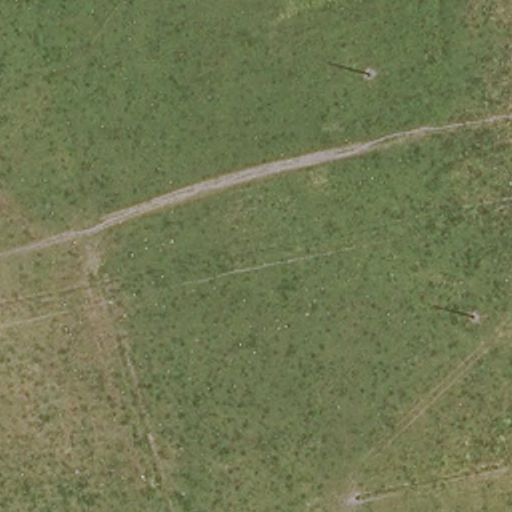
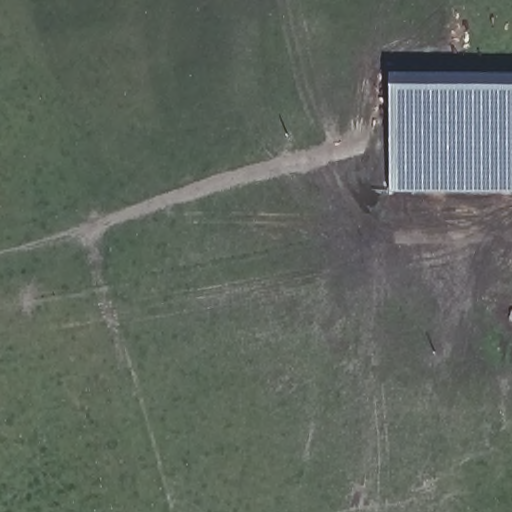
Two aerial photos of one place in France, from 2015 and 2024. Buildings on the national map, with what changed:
new [(512,76),(512,193),(390,192),(391,75),(512,76)]

